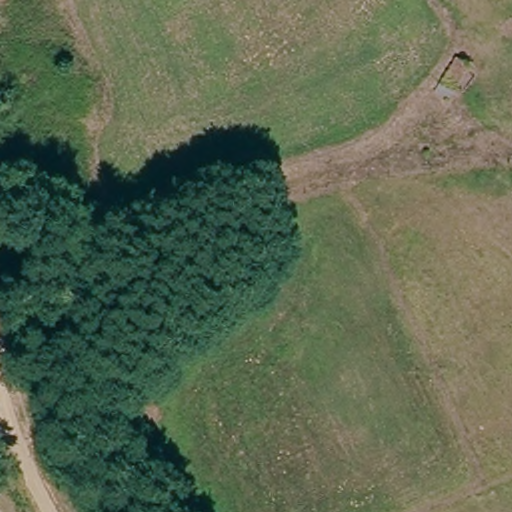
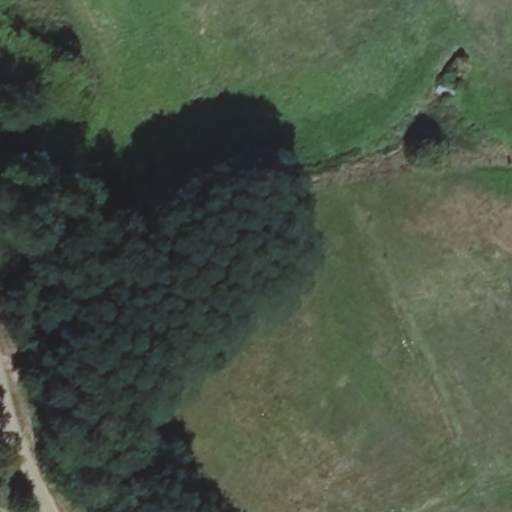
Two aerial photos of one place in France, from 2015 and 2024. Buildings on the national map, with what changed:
unchanged [(457,83),(446,76),(456,59),(468,66),(457,83)]

